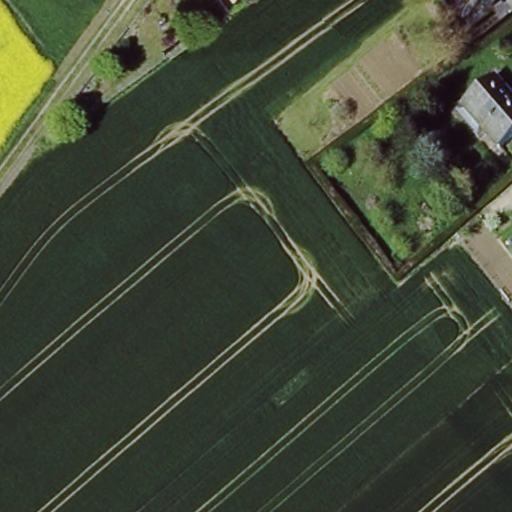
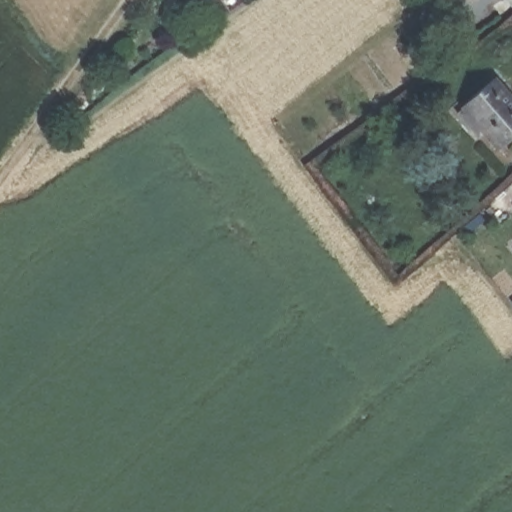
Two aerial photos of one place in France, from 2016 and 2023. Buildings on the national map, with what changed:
unchanged [(500,5),(496,0),(506,0),(500,5)]
unchanged [(512,100),(512,136),(497,148),(461,103),(493,77),(512,100)]

